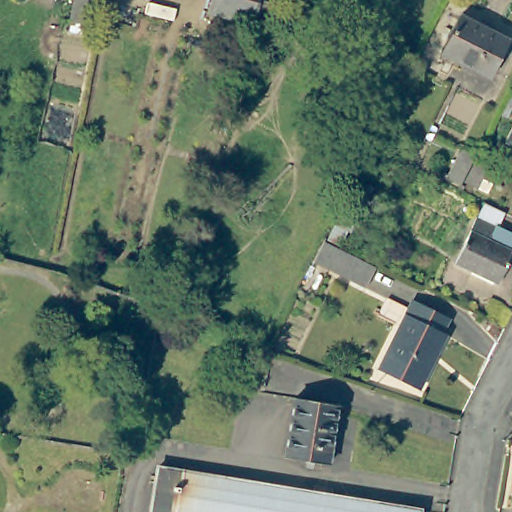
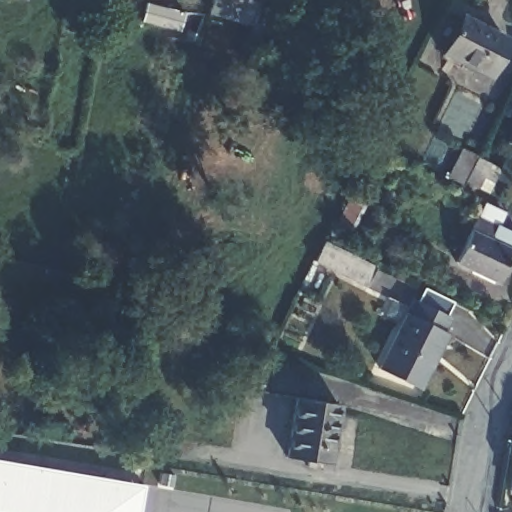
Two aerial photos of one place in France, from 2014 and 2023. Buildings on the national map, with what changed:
unchanged [(94,23),(69,16),(72,0),(100,0),(94,23)]
unchanged [(264,34),(262,34),(249,29),(251,19),(210,6),(212,0),(274,0),(264,34)]
unchanged [(480,20),(478,24),(508,39),(491,74),(444,50),(462,11),(480,20)]
unchanged [(512,125),(512,137),(507,135),(512,125)]
unchanged [(476,183),(464,177),(462,181),(449,174),(463,145),(476,152),(489,159),(476,183)]
unchanged [(512,246),(495,278),(452,256),(476,211),(512,230),(512,246)]
unchanged [(372,265),(363,285),(313,259),(322,239),(372,265)]
unchanged [(448,313),(442,329),(446,330),(419,385),(381,366),(416,297),(448,313)]
unchanged [(336,402),(327,462),(285,456),(294,396),(336,402)]
new [(0,512),(0,460),(140,485),(136,512),(0,512)]
unchanged [(417,512),(185,512),(151,512),(159,462),(418,505),(417,512)]
unchanged [(512,470),(512,490),(508,489),(512,470)]

